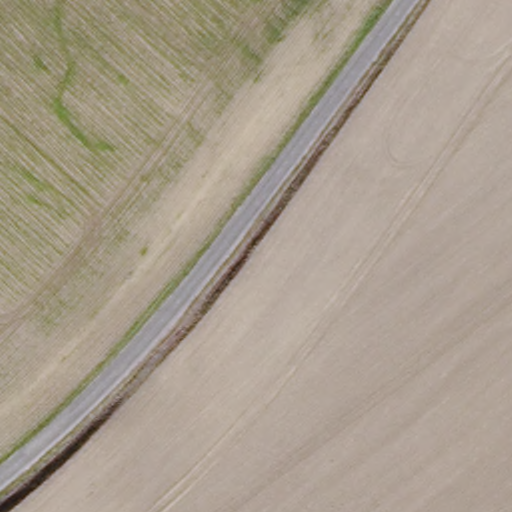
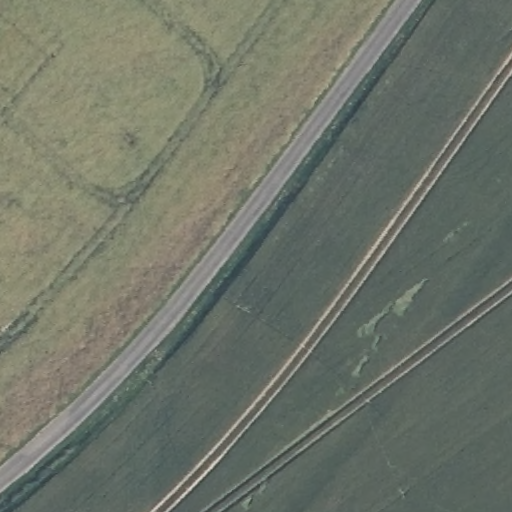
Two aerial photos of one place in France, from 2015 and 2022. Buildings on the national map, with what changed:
[]

